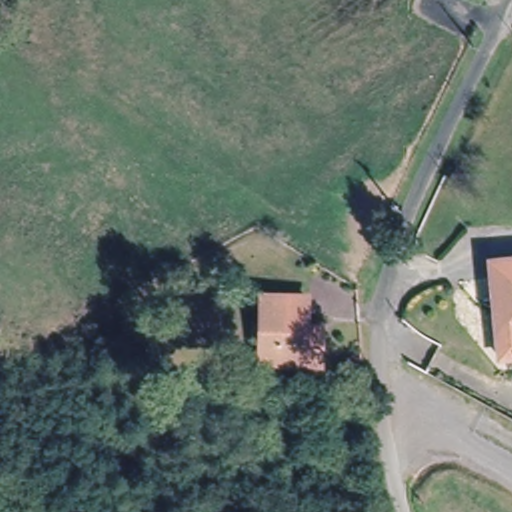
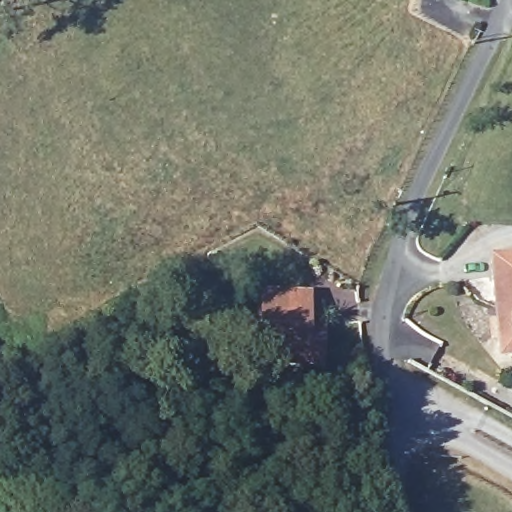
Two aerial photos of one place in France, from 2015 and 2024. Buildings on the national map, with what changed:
unchanged [(494,358),(490,259),(512,259),(512,358),(494,358)]
unchanged [(255,344),(255,296),(300,296),(300,323),(310,323),(310,338),(310,367),(267,367),(255,367),(255,344)]

